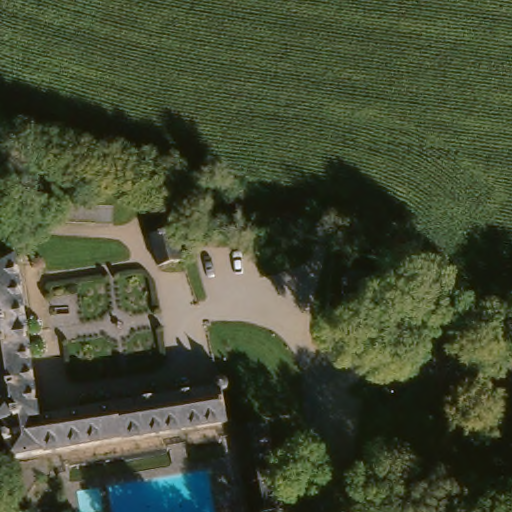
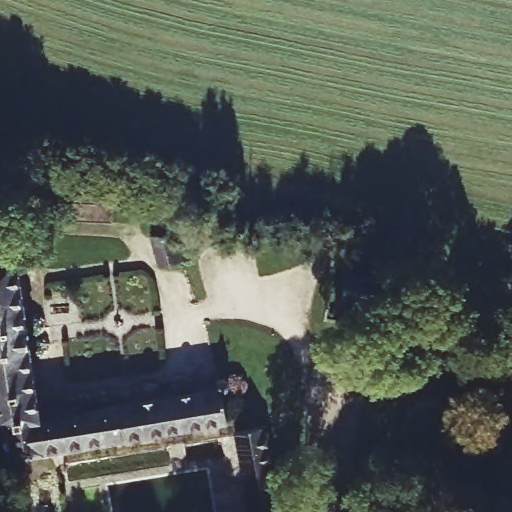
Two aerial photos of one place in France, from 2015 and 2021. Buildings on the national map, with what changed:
unchanged [(168,230),(170,243),(174,242),(181,273),(154,279),(144,244),(153,244),(148,231),(168,230)]
unchanged [(36,424),(208,396),(206,389),(223,385),(225,395),(219,399),(226,429),(3,464),(1,428),(0,428),(0,242),(9,242),(36,424)]
unchanged [(376,295),(373,323),(328,317),(331,288),(376,295)]
unchanged [(263,432),(278,512),(246,512),(233,436),(263,432)]

